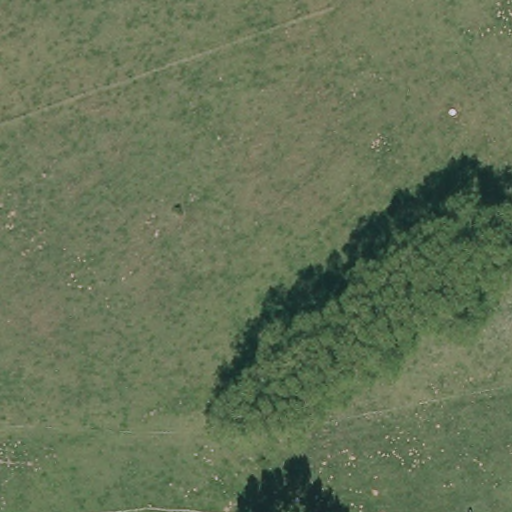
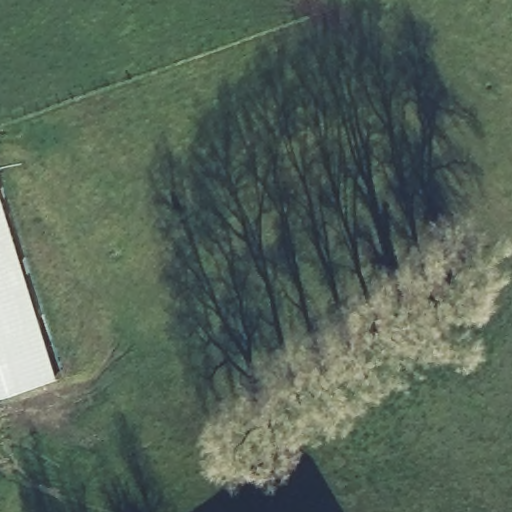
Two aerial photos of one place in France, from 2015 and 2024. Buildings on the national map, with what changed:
new [(0,392),(0,175),(65,371),(0,392)]

